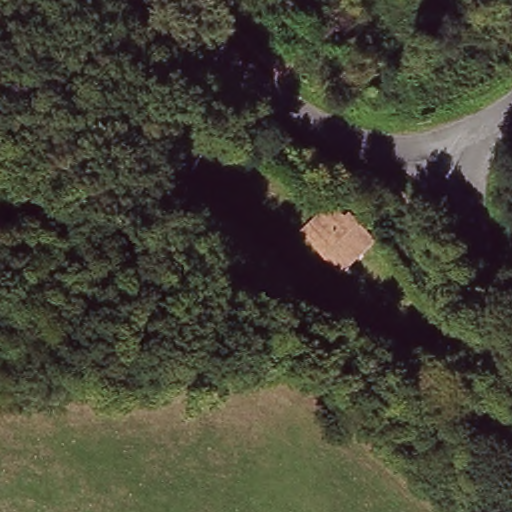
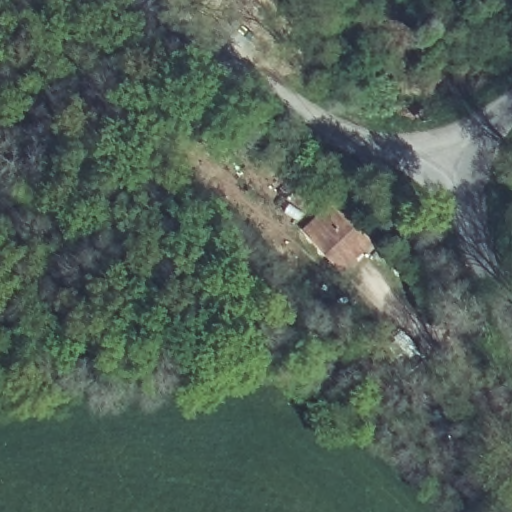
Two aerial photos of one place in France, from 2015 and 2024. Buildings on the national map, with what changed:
unchanged [(340,215),(349,210),(374,239),(336,276),(299,231),(327,199),(340,215)]

